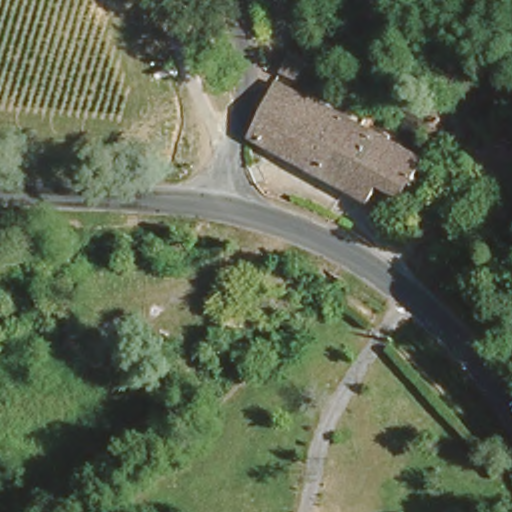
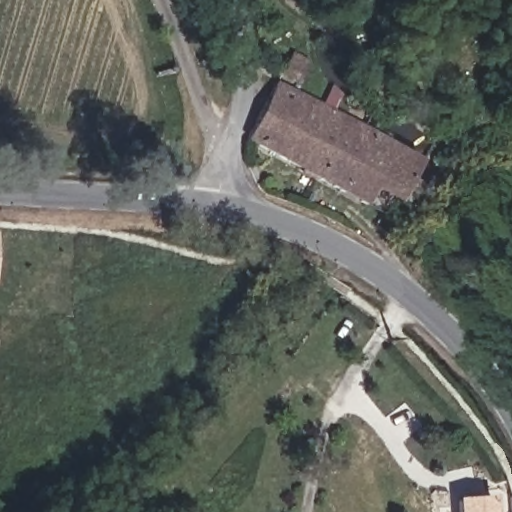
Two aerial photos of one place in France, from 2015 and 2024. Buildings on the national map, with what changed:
unchanged [(285,55),(289,45),(301,50),(298,57),(301,58),(294,77),(280,72),(279,63),(281,54),(285,55)]
unchanged [(384,173),(373,196),(349,190),(342,187),(328,181),(293,167),(244,147),(268,86),(278,90),(329,112),(357,122),(369,127),(403,139),(424,147),(411,182),(384,173)]
new [(494,512),(454,512),(453,497),(493,494),(494,512)]

